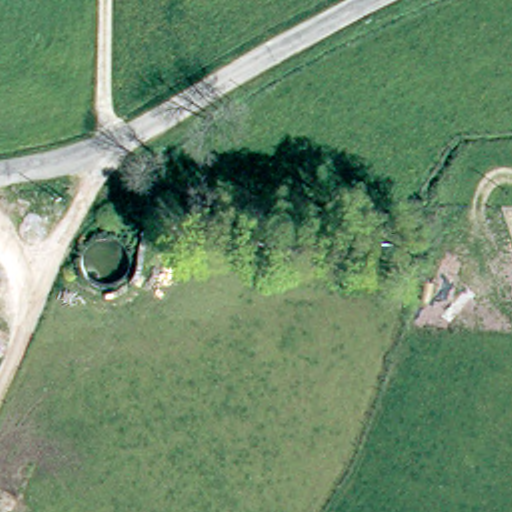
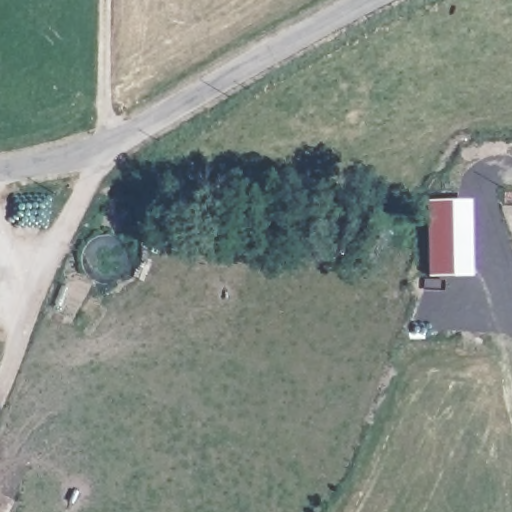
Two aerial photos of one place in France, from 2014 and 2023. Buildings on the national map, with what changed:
new [(455,277),(430,278),(428,205),(428,201),(453,201),(470,201),(471,206),(472,277),(455,277)]

